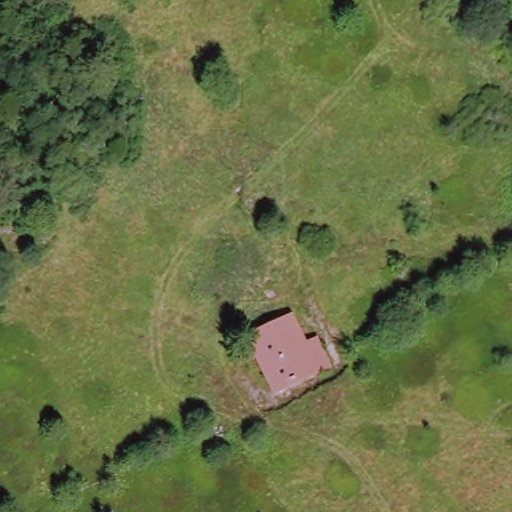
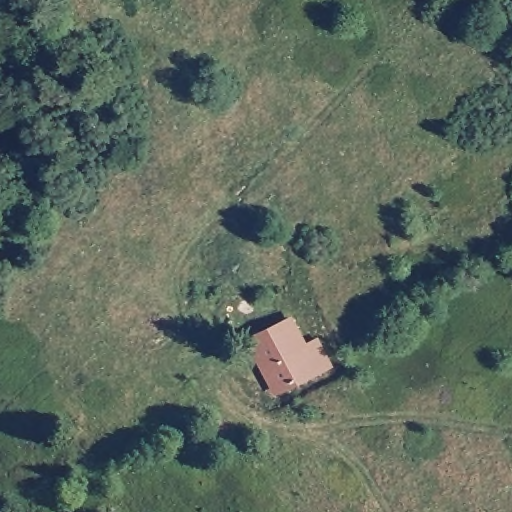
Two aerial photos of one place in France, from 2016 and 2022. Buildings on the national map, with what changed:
unchanged [(271,395),(244,344),(282,324),(298,352),(310,345),(326,369),(271,395)]

